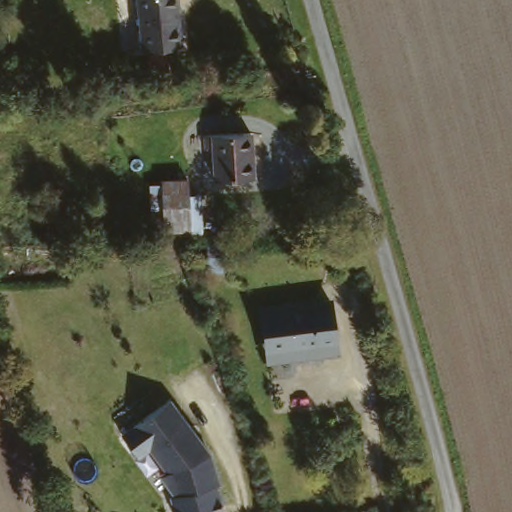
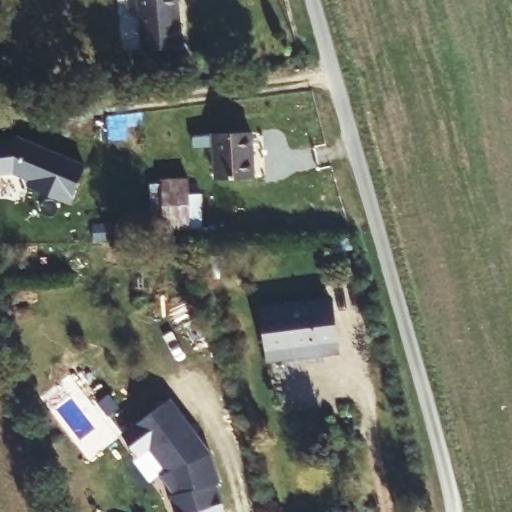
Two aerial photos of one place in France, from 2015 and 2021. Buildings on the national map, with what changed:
unchanged [(138,0),(176,0),(181,51),(144,54),(138,0)]
unchanged [(219,181),(217,152),(208,153),(207,139),(252,135),(255,177),(219,181)]
new [(18,136),(85,167),(70,202),(29,185),(32,179),(15,171),(0,172),(0,139),(18,136)]
unchanged [(159,241),(154,184),(164,182),(163,177),(191,174),(192,190),(207,187),(211,237),(181,241),(159,242),(159,241)]
unchanged [(232,266),(232,278),(219,278),(219,265),(232,266)]
unchanged [(266,346),(262,311),(330,304),(333,346),(318,348),(318,355),(292,357),(267,360),(266,346)]
unchanged [(144,444),(132,427),(184,394),(220,452),(229,478),(185,490),(169,471),(175,467),(159,442),(147,450),(144,444)]

